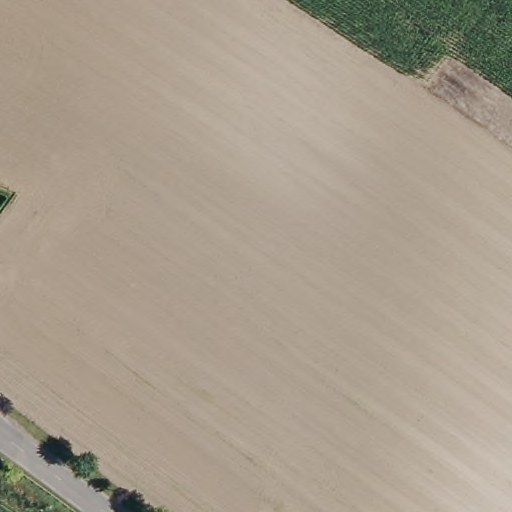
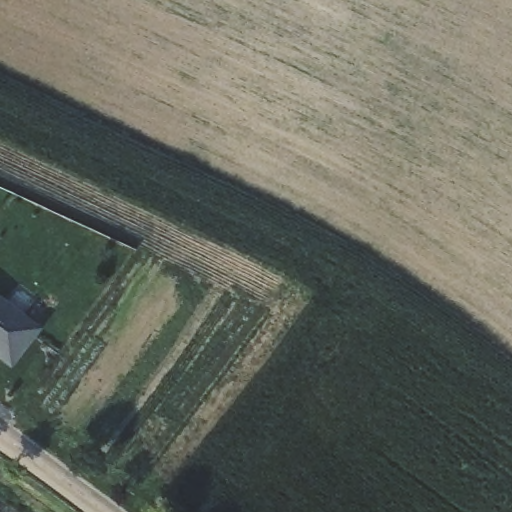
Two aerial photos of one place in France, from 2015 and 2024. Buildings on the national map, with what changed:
new [(40,330),(13,366),(0,357),(0,300),(40,330)]

